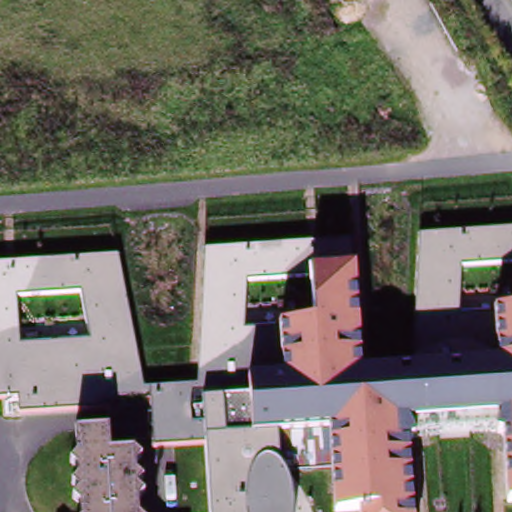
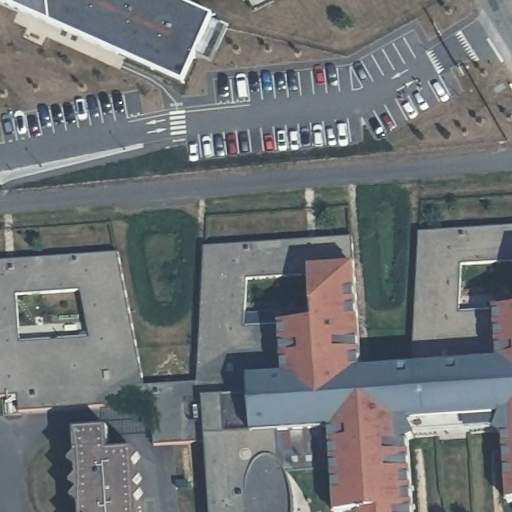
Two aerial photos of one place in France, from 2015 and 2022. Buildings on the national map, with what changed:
new [(184,81),(51,24),(10,2),(0,3),(0,0),(176,0),(214,18),(184,81)]
unchanged [(327,431),(278,432),(278,440),(280,463),(287,475),(292,486),(293,512),(210,512),(206,439),(155,443),(152,400),(106,402),(106,408),(20,412),(18,397),(0,398),(0,262),(116,255),(144,386),(196,382),(205,250),(350,239),(354,268),(362,373),(410,368),(421,234),(512,228),(512,261),(460,265),(459,315),(512,310),(512,505),(507,506),(503,436),(496,436),(497,431),(493,433),(417,438),(415,439),(407,442),(413,512),(333,512),(327,431)]
unchanged [(79,508),(72,504),(79,496),(72,489),(77,479),(77,470),(70,465),(76,459),(74,436),(109,432),(111,457),(131,454),(138,458),(135,467),(136,475),(141,479),(135,487),(144,493),(136,499),(137,512),(79,512),(79,508)]

